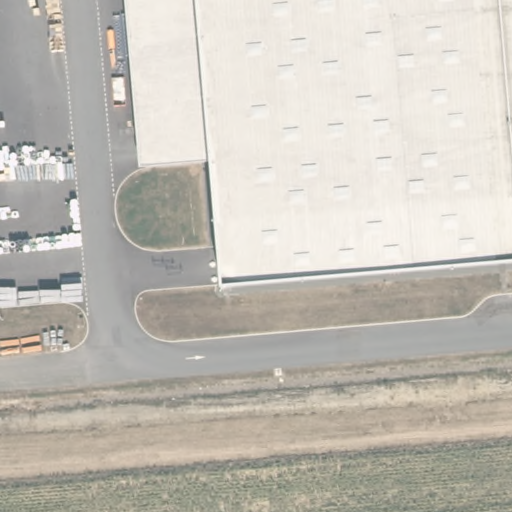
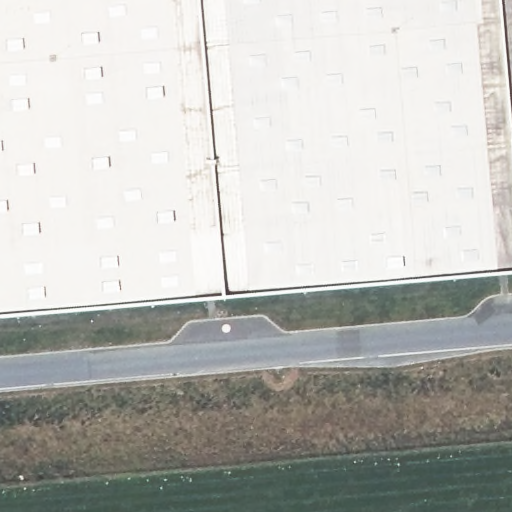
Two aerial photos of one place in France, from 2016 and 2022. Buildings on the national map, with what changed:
new [(142,166),(212,157),(223,285),(0,306),(0,0),(128,0),(142,166)]
unchanged [(128,0),(512,0),(512,261),(223,285),(212,157),(142,166),(128,0)]

